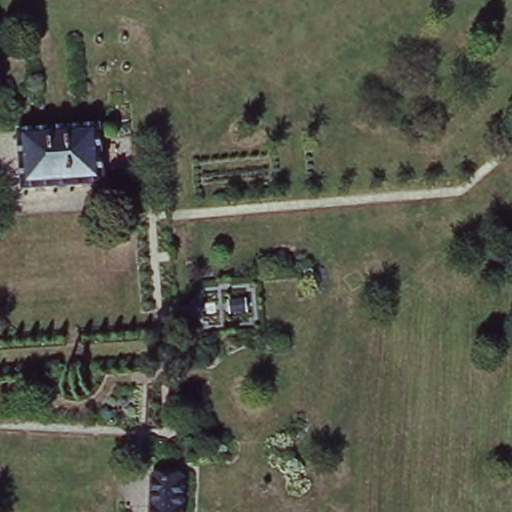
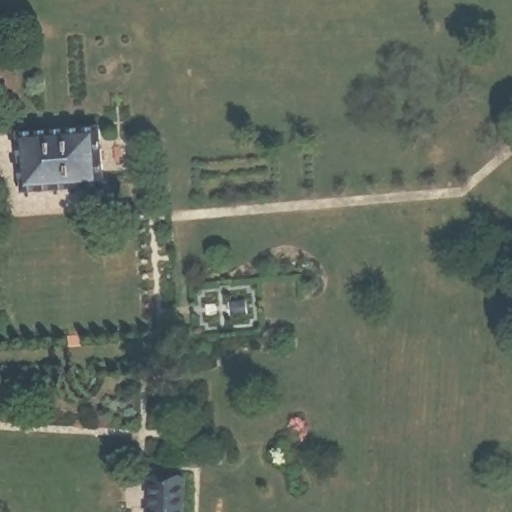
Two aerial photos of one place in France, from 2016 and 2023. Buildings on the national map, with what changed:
unchanged [(102,120),(107,183),(22,186),(18,127),(102,120)]
unchanged [(192,472),(190,512),(158,512),(160,470),(192,472)]

